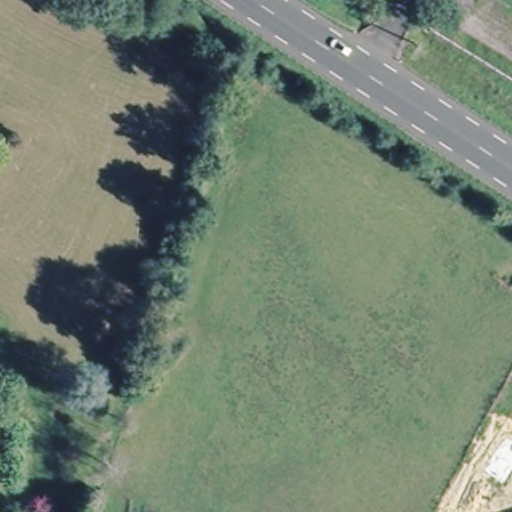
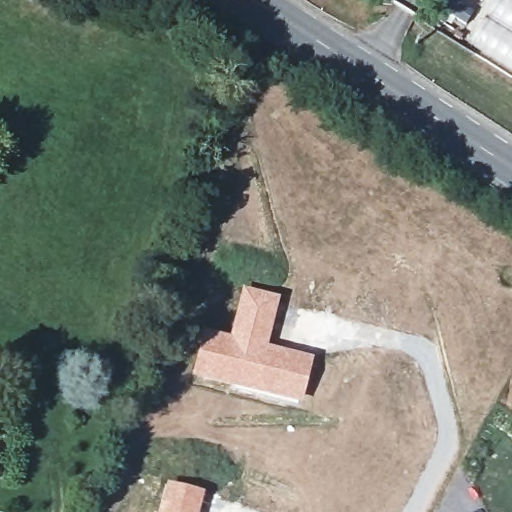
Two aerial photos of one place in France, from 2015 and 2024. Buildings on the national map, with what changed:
new [(462,43),(489,0),(512,0),(512,71),(462,43)]
new [(202,328),(229,335),(242,287),(280,296),(268,344),(313,357),(302,402),(191,375),(202,328)]
new [(166,482),(204,492),(199,512),(159,512),(166,482)]

